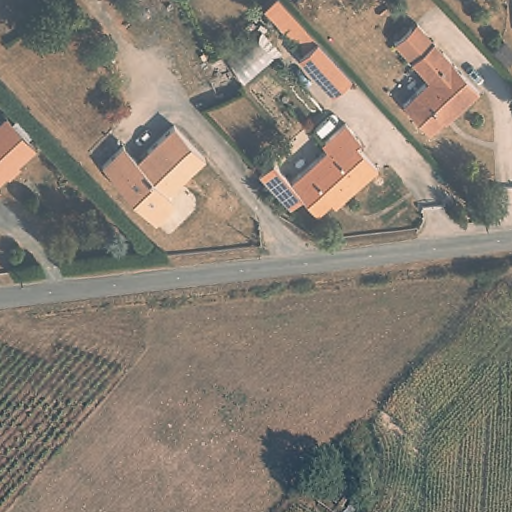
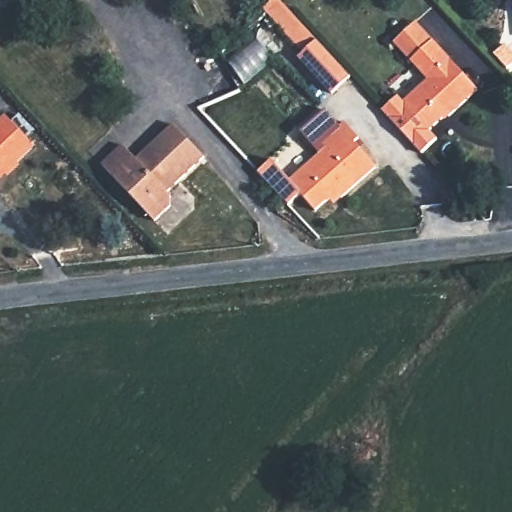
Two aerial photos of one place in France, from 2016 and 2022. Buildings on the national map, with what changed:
unchanged [(110,0),(120,0),(112,4),(110,0)]
unchanged [(264,7),(264,6),(271,0),(282,0),(317,40),(305,52),(264,7)]
unchanged [(452,115),(433,132),(406,104),(431,80),(401,47),(422,26),(485,94),(457,120),(452,115)]
unchanged [(334,93),(300,56),(305,52),(317,40),(352,79),(334,93)]
unchanged [(4,115),(32,144),(13,163),(10,159),(2,166),(6,169),(0,176),(0,119),(4,115)]
unchanged [(325,141),(349,118),(364,134),(358,140),(382,164),(346,197),(339,190),(320,208),(305,191),(292,204),(261,171),(273,160),(295,181),(330,149),(325,141)]
unchanged [(121,152),(139,169),(150,157),(146,154),(171,130),(200,159),(167,194),(172,197),(167,202),(170,205),(155,220),(102,170),(121,152)]

